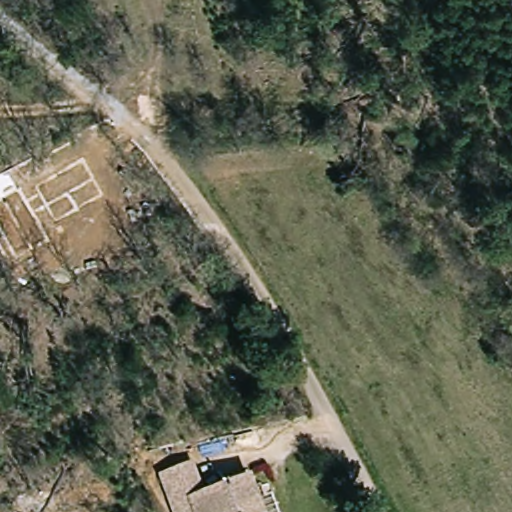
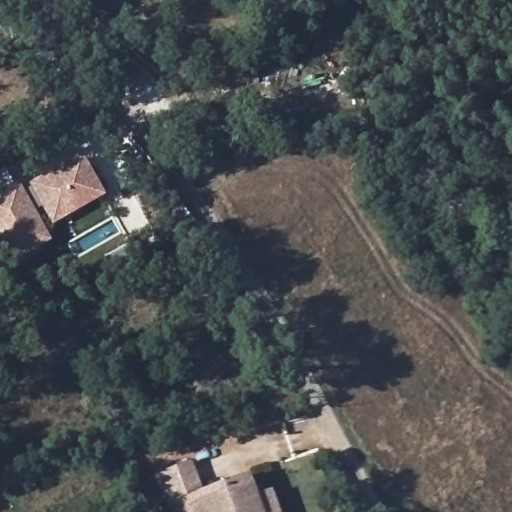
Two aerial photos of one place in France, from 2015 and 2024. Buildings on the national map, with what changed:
new [(44,208),(37,212),(53,240),(15,260),(0,236),(0,172),(7,168),(16,186),(21,183),(26,190),(32,187),(31,184),(85,154),(107,194),(54,227),(44,208)]
unchanged [(199,453),(210,486),(258,471),(272,512),(184,512),(169,463),(199,453)]

